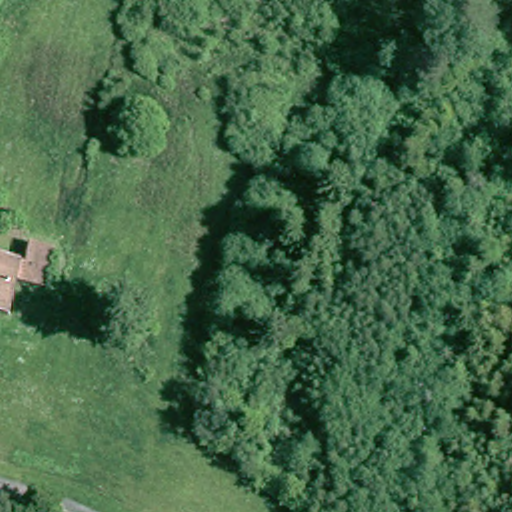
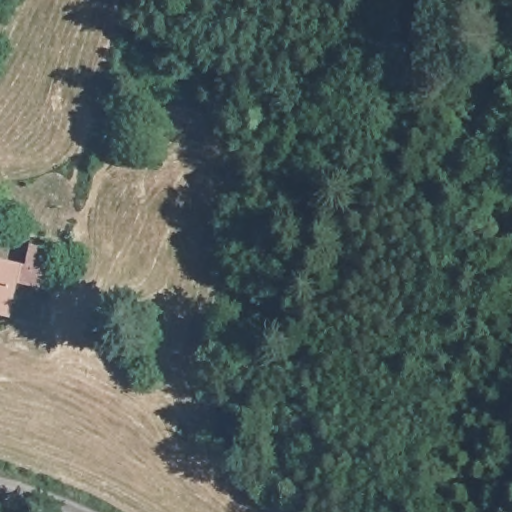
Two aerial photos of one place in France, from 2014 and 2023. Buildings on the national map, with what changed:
unchanged [(24,260),(21,307),(0,306),(0,258),(24,260)]

